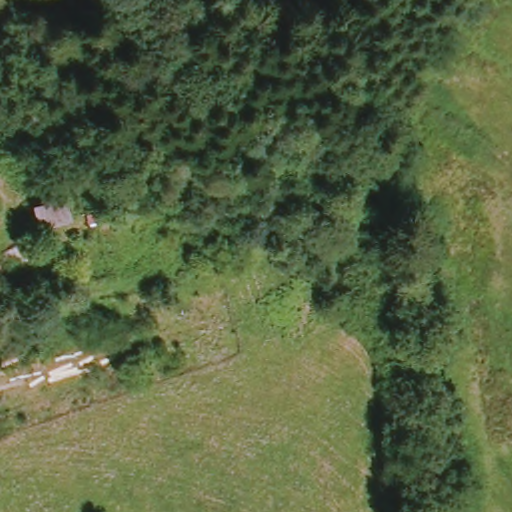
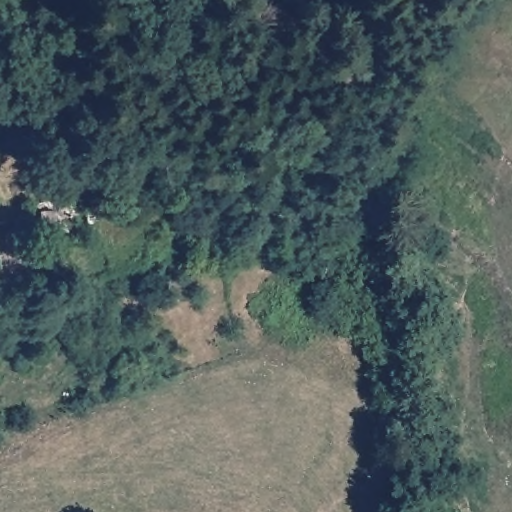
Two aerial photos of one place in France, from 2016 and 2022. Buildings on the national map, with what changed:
unchanged [(34,222),(29,202),(63,195),(68,214),(34,222)]

